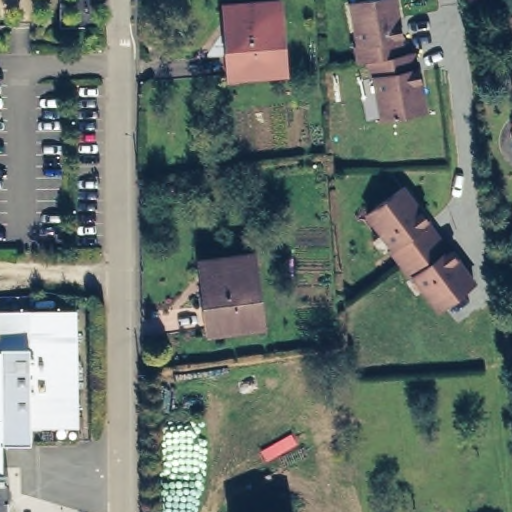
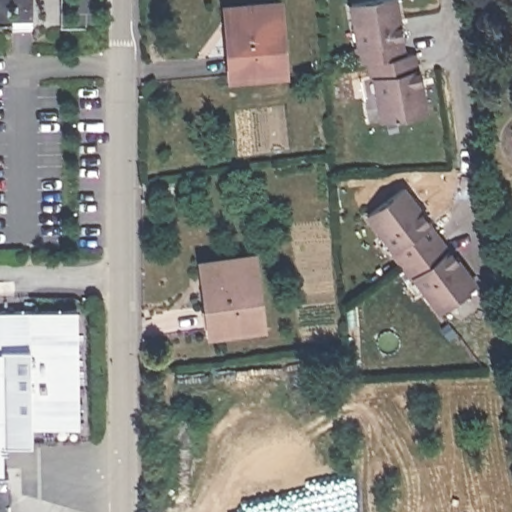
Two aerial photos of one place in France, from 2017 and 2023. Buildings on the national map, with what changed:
unchanged [(398,40),(401,55),(411,54),(414,70),(415,70),(423,112),(380,120),(375,97),(380,96),(376,78),(370,79),(367,62),(357,64),(353,46),(360,45),(357,26),(352,27),(348,4),(372,0),(393,0),(400,39),(398,40)]
unchanged [(280,3),(283,72),(234,76),(229,7),(280,3)]
unchanged [(402,185),(475,282),(436,311),(366,214),(402,185)]
unchanged [(248,256),(257,325),(213,331),(209,302),(205,302),(200,263),(248,256)]
unchanged [(75,308),(77,425),(27,427),(28,440),(2,441),(3,470),(7,473),(8,495),(5,499),(6,512),(0,512),(0,310),(75,308)]

